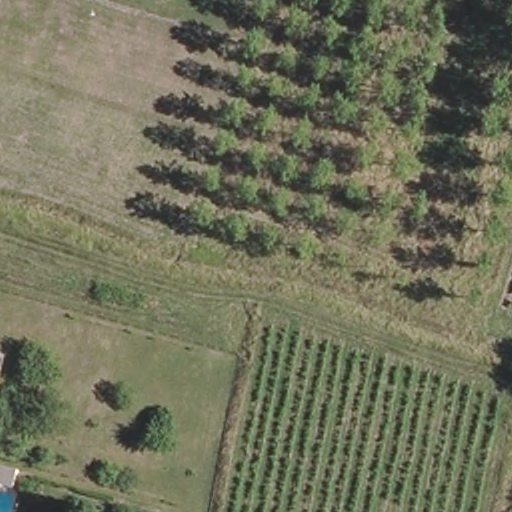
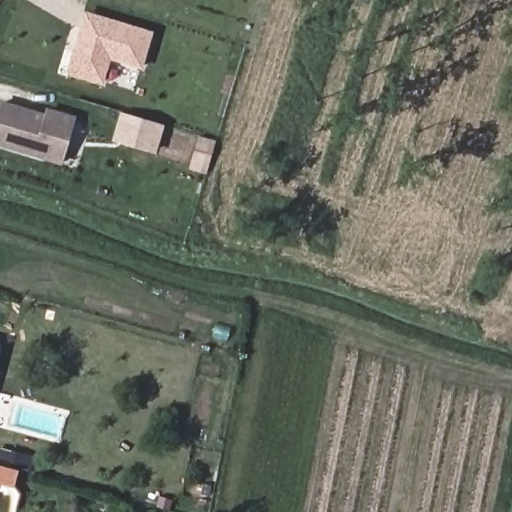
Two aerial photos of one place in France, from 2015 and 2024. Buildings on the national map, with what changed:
new [(84,11),(153,30),(153,32),(142,69),(110,60),(103,84),(66,73),(84,11)]
new [(0,146),(0,102),(0,100),(44,113),(46,107),(76,116),(63,165),(0,146)]
new [(164,124),(156,154),(111,140),(120,111),(164,124)]
demolished [(9,495),(0,492),(0,472),(12,476),(9,495)]
unchanged [(0,473),(1,473),(0,477),(0,473)]

